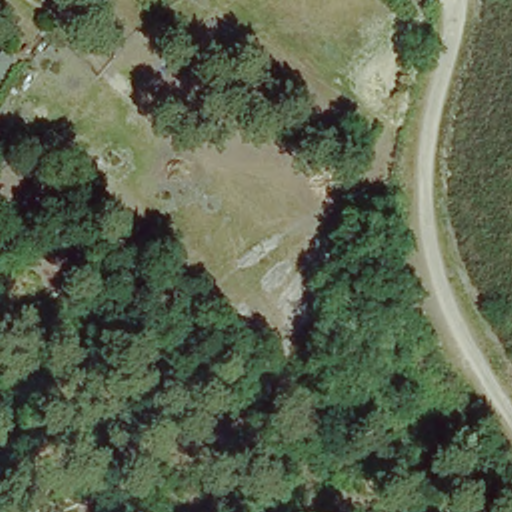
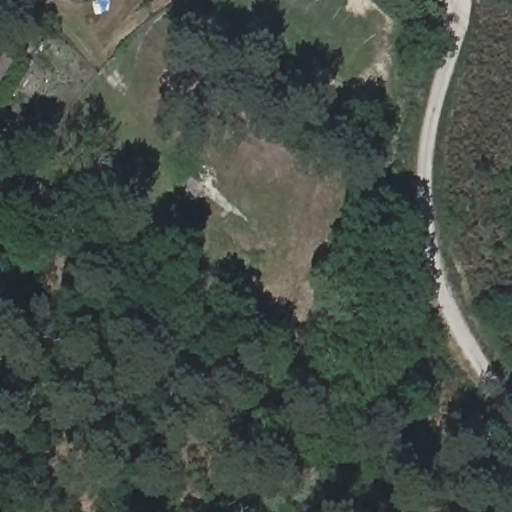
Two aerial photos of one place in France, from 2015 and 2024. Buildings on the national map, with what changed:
[]

